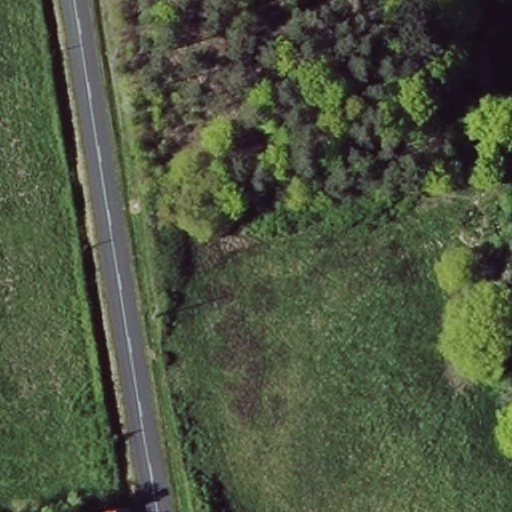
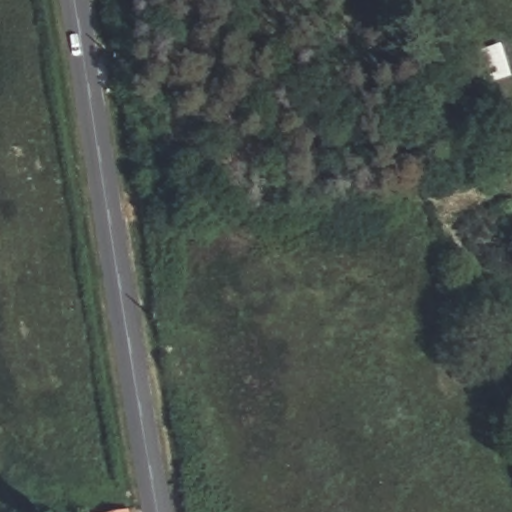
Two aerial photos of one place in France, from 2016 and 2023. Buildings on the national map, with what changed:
unchanged [(125,498),(128,512),(89,512),(87,508),(125,498)]

